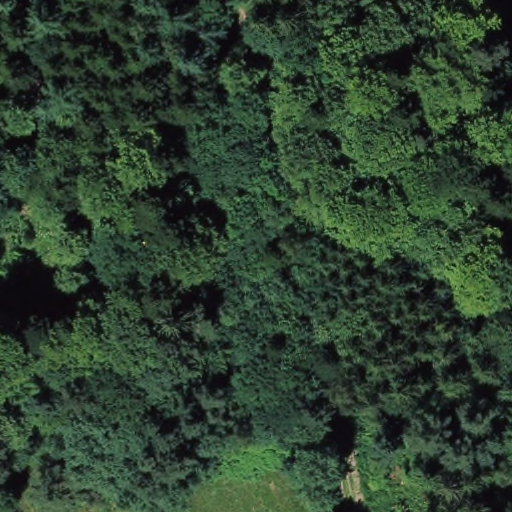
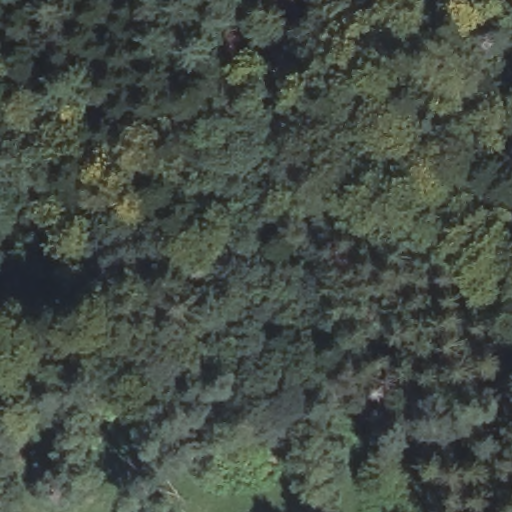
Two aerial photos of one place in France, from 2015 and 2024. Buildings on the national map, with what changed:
[]

